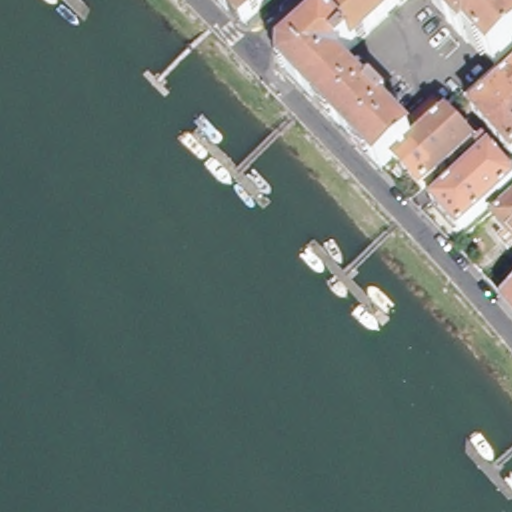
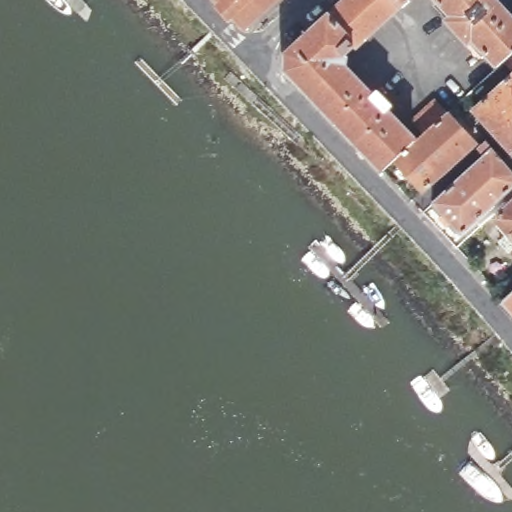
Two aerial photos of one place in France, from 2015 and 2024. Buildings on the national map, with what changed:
unchanged [(222,0),(273,0),(245,25),(222,0)]
unchanged [(389,0),(399,11),(345,60),(318,31),(353,0),(389,0)]
unchanged [(389,0),(412,0),(399,11),(389,0)]
unchanged [(512,59),(505,64),(498,71),(473,45),(469,49),(449,26),(453,22),(432,0),(489,0),(512,25),(512,59)]
unchanged [(318,31),(345,60),(346,67),(345,70),(373,100),(378,96),(392,110),(387,115),(416,145),(395,165),(382,177),(286,74),(287,59),(318,31)]
unchanged [(512,59),(512,72),(505,64),(512,59)]
unchanged [(512,81),(512,157),(474,115),(512,81)]
unchanged [(425,138),(413,125),(435,105),(447,118),(476,149),(423,197),(395,165),(416,145),(425,138)]
unchanged [(502,197),(461,234),(433,203),(494,149),(512,169),(512,197),(507,202),(502,197)]
unchanged [(512,204),(512,237),(495,219),(512,204)]
unchanged [(512,294),(512,309),(505,300),(512,294)]

